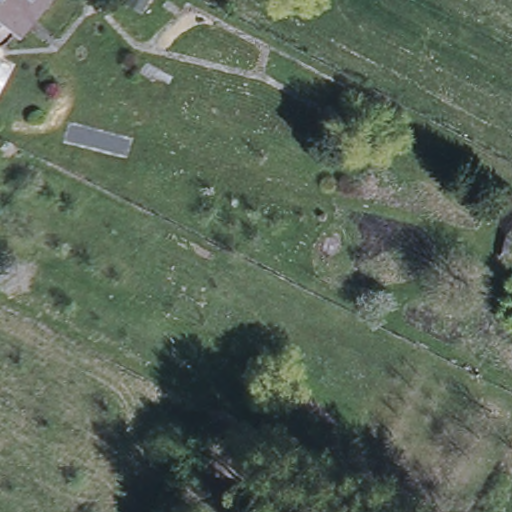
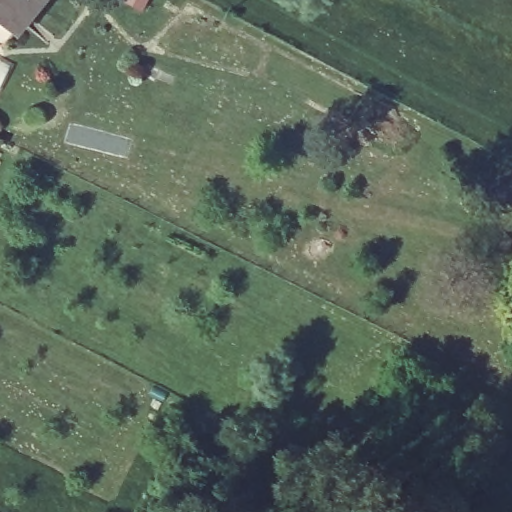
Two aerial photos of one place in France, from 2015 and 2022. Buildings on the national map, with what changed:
unchanged [(17,34),(0,20),(0,0),(45,0),(17,34)]
unchanged [(143,8),(129,0),(147,0),(143,8)]

